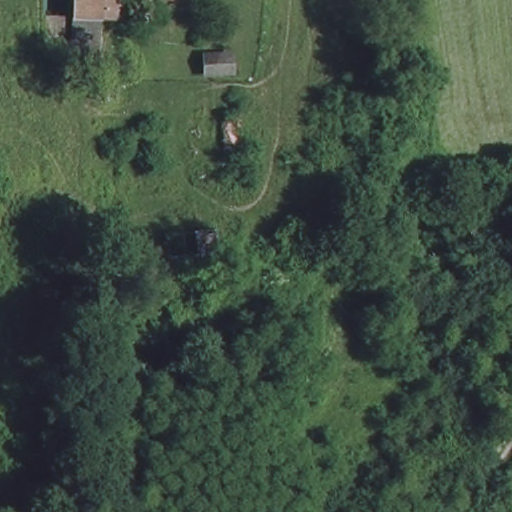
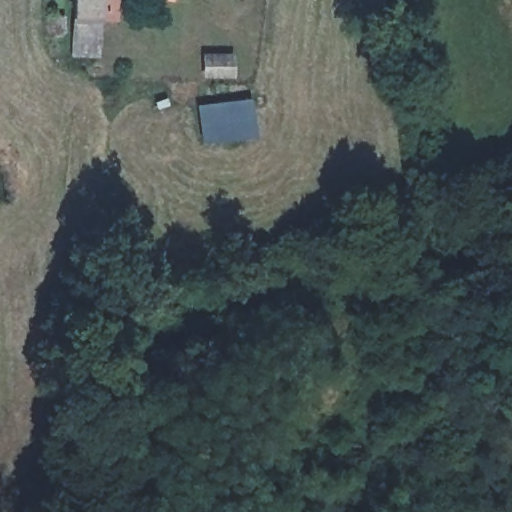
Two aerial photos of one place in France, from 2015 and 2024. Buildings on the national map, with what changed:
unchanged [(103,0),(103,24),(80,22),(81,0),(103,0)]
new [(202,77),(202,52),(234,52),(234,77),(202,77)]
new [(253,97),(259,138),(202,144),(197,104),(253,97)]

